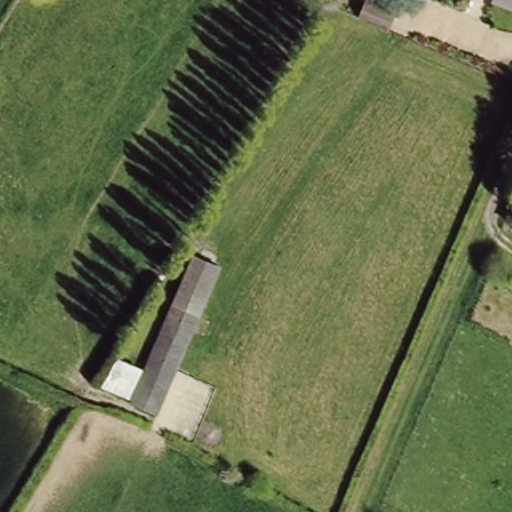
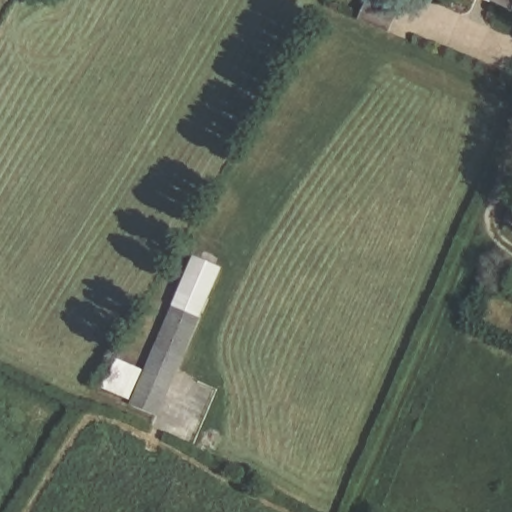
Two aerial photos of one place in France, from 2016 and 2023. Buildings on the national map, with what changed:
unchanged [(356,3),(357,0),(397,0),(389,17),(356,3)]
unchanged [(497,0),(507,0),(505,3),(497,0)]
unchanged [(196,256),(222,268),(155,411),(130,399),(196,256)]

